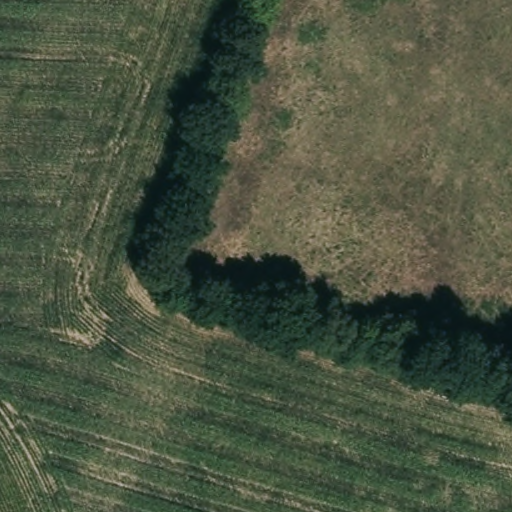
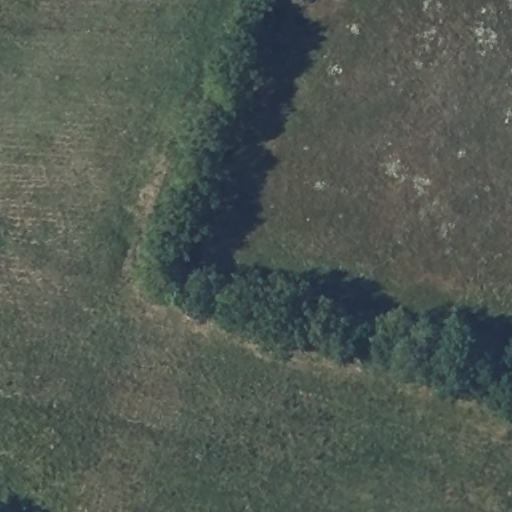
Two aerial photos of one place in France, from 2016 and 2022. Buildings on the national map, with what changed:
[]

